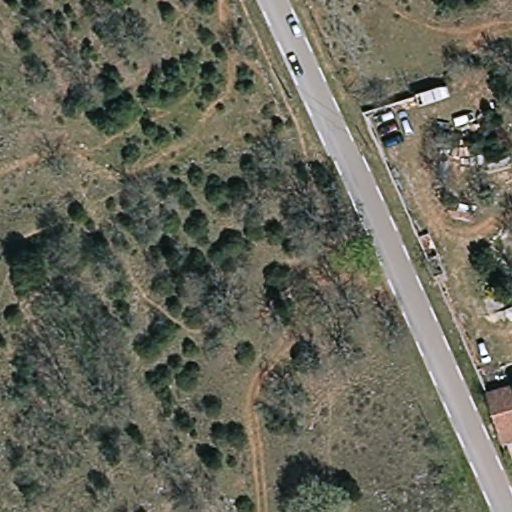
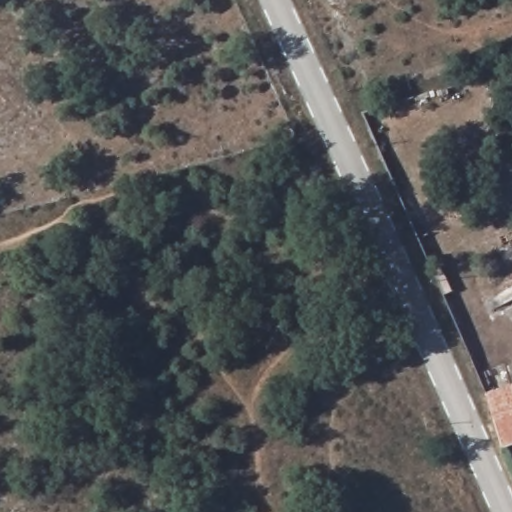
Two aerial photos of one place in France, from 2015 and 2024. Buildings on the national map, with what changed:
unchanged [(480,397),(512,387),(512,446),(497,450),(480,397)]

